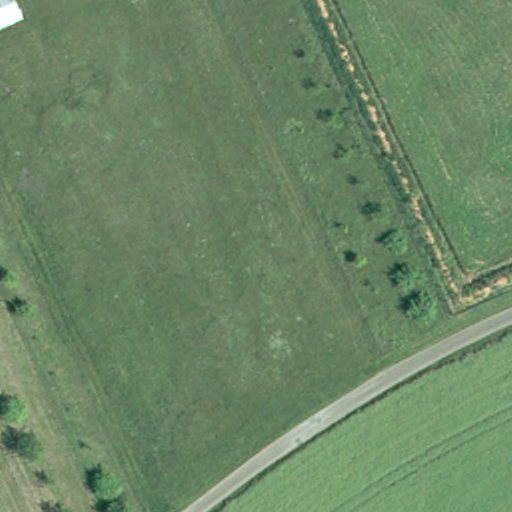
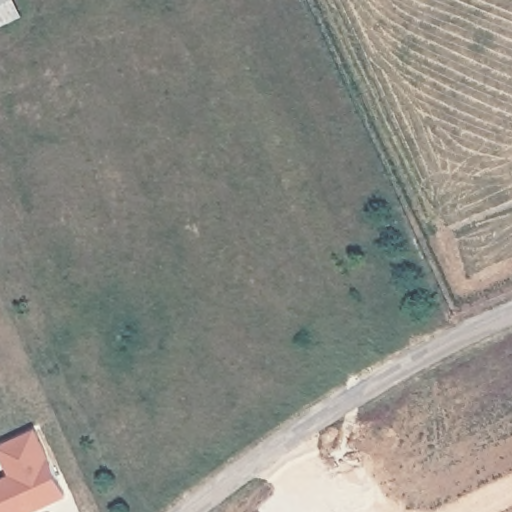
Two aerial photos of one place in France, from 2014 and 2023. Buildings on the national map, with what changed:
unchanged [(25,17),(0,28),(0,0),(16,0),(25,17)]
new [(0,450),(0,446),(39,428),(70,495),(33,512),(0,512),(0,480),(12,474),(0,450)]

